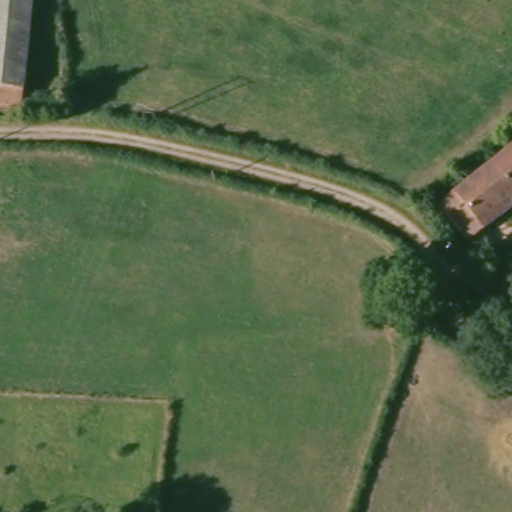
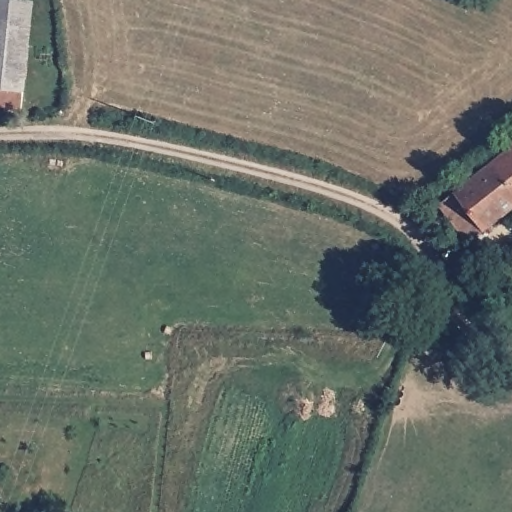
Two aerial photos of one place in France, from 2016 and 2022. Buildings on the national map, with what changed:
unchanged [(0,106),(0,4),(45,10),(27,110),(0,106)]
unchanged [(512,151),(512,209),(471,245),(442,212),(512,151)]

